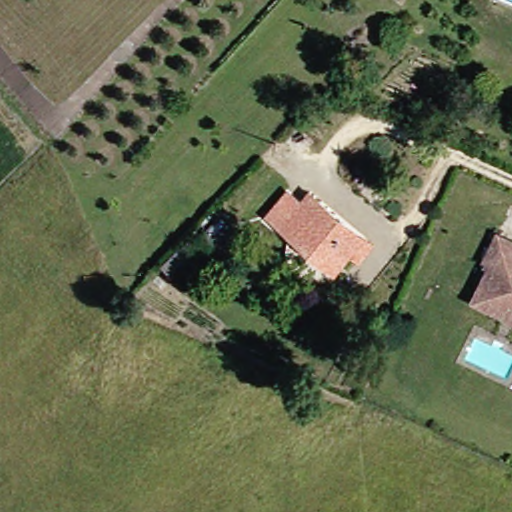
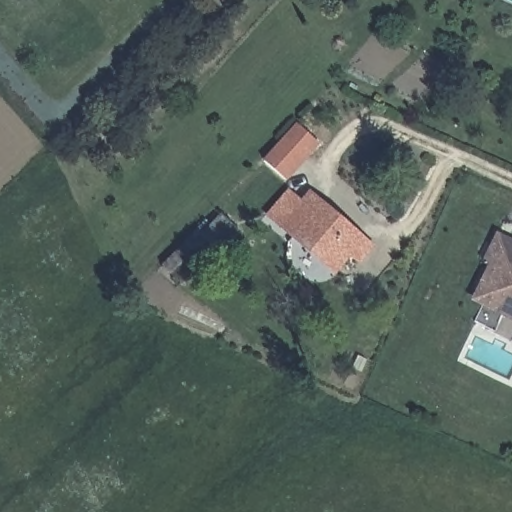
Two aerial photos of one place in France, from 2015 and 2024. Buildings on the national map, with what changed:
new [(297,124),(318,142),(305,157),(285,180),(264,161),(284,138),(297,124)]
unchanged [(298,234),(284,221),(314,187),(368,235),(376,241),(363,255),(355,249),(342,264),(338,268),(298,234)]
unchanged [(490,260),(502,235),(512,240),(512,297),(487,285),(497,263),(490,260)]
unchanged [(487,285),(512,297),(512,315),(479,300),(487,285)]

